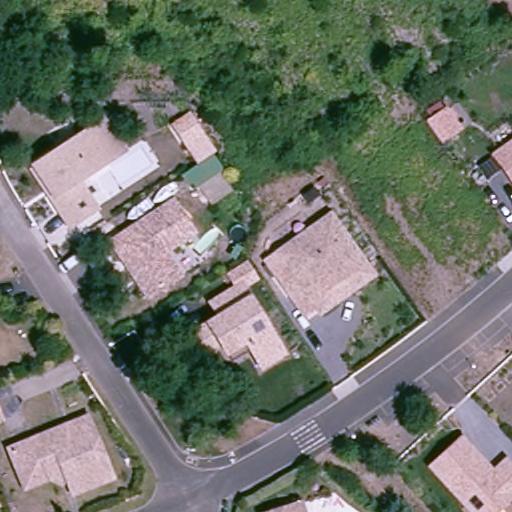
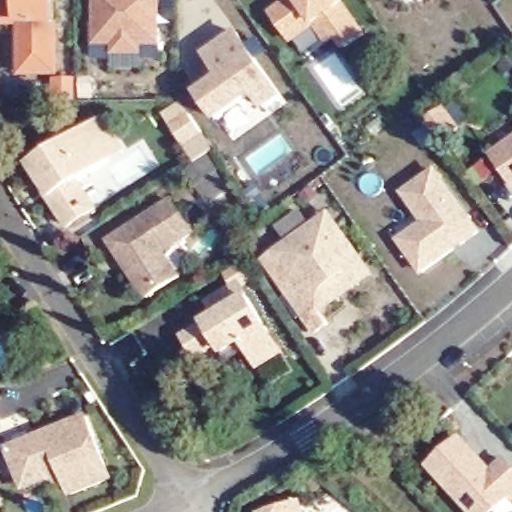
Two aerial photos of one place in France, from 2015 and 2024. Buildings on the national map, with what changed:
new [(20,78),(19,25),(3,25),(2,0),(58,0),(60,75),(20,78)]
new [(142,45),(142,54),(114,55),(114,46),(95,46),(95,0),(162,0),(162,45),(142,45)]
new [(345,51),(336,38),(327,44),(313,26),(292,44),(270,12),(283,0),(344,0),(368,34),(345,51)]
new [(265,111),(255,98),(220,124),(198,94),(220,76),(204,53),(239,29),(286,97),(265,111)]
new [(170,123),(189,111),(216,151),(208,158),(219,174),(197,188),(186,172),(196,165),(170,123)]
unchanged [(445,112),(458,130),(440,143),(437,139),(427,124),(445,112)]
unchanged [(52,198),(33,168),(103,121),(124,153),(77,183),(96,210),(69,228),(50,199),(52,198)]
unchanged [(512,148),(512,176),(498,158),(512,148)]
demolished [(196,165),(208,158),(219,174),(197,188),(186,172),(196,165)]
unchanged [(495,160),(504,172),(492,180),(483,169),(495,160)]
new [(482,233),(423,275),(397,240),(422,223),(401,193),(436,167),(482,233)]
unchanged [(111,243),(173,202),(194,234),(163,253),(179,278),(148,298),(130,272),(120,257),(111,243)]
unchanged [(292,298),(267,263),(297,242),(313,230),(330,218),(368,272),(372,277),(320,313),(320,312),(307,320),(292,298)]
unchanged [(239,283),(283,354),(261,369),(245,343),(226,354),(220,344),(199,358),(186,338),(209,324),(219,318),(210,304),(239,283)]
unchanged [(92,413),(116,474),(77,490),(66,464),(59,467),(58,472),(40,479),(25,473),(13,444),(92,413)]
unchanged [(512,467),(512,499),(498,512),(472,512),(441,479),(432,469),(462,441),(483,464),(493,475),(507,462),(512,467)]
unchanged [(263,508),(300,497),(305,512),(265,512),(263,508)]

